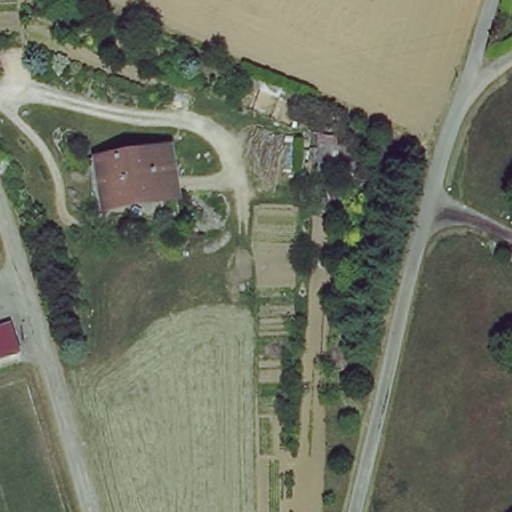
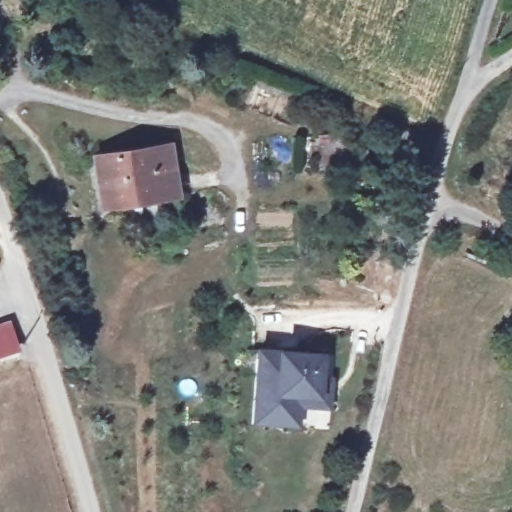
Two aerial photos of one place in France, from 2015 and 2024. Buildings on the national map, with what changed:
unchanged [(101,198),(98,160),(166,147),(172,196),(131,203),(103,209),(101,198)]
unchanged [(16,347),(0,353),(0,323),(8,320),(9,327),(16,347)]
new [(331,410),(301,408),(301,427),(251,425),(256,348),(279,350),(324,352),(323,376),(333,377),(331,410)]

